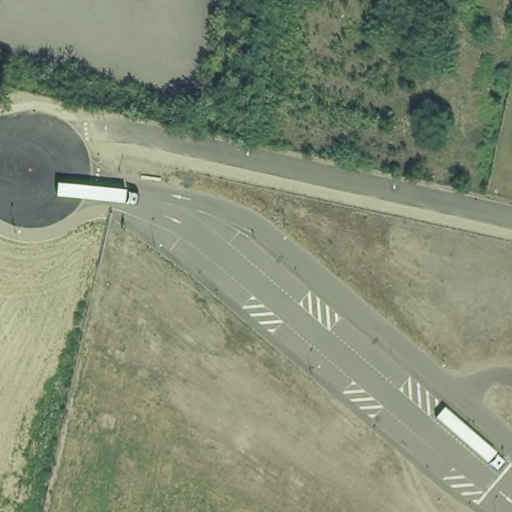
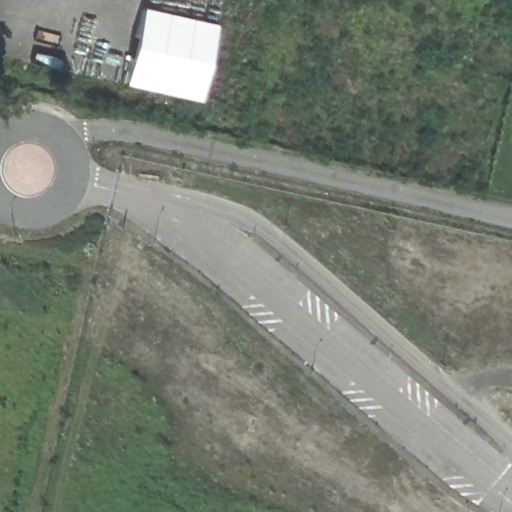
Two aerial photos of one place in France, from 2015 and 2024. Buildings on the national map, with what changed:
new [(143,5),(218,22),(200,101),(125,84),(143,5)]

